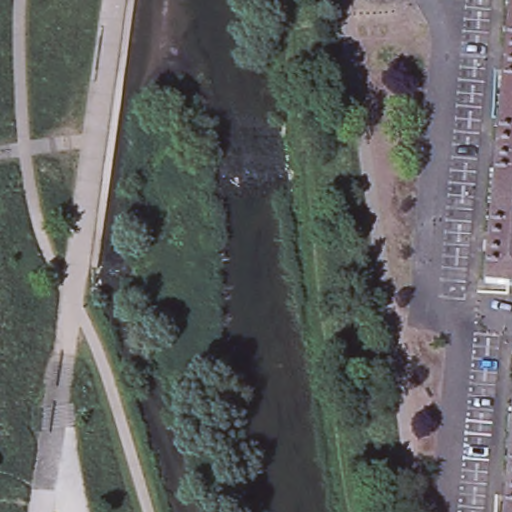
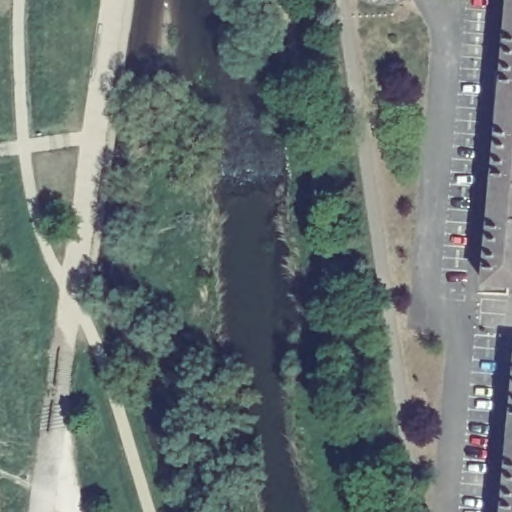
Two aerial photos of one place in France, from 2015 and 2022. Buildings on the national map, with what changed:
unchanged [(509,0),(512,0),(512,287),(485,284),(509,0)]
unchanged [(512,408),(512,512),(503,512),(512,408)]

